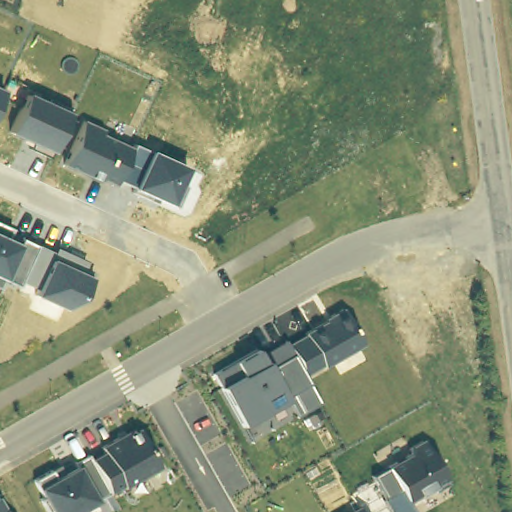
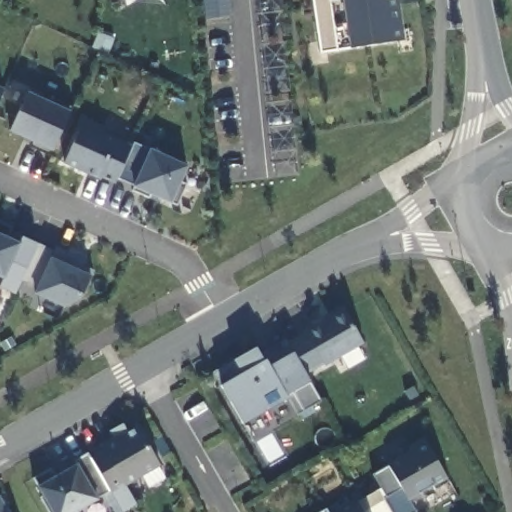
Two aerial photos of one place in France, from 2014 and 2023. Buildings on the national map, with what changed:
new [(206,20),(203,0),(229,0),(231,18),(206,20)]
new [(349,50),(319,53),(311,0),(396,0),(402,42),(349,50)]
unchanged [(0,98),(0,89),(3,91),(0,98)]
unchanged [(71,113),(54,151),(49,158),(28,148),(30,143),(7,132),(27,93),(71,113)]
unchanged [(103,129),(101,134),(132,146),(133,144),(151,151),(186,167),(169,203),(117,179),(114,187),(65,164),(82,121),(103,129)]
unchanged [(11,234),(53,252),(55,247),(89,262),(85,269),(95,273),(92,278),(82,299),(64,309),(34,295),(37,288),(21,281),(19,285),(5,278),(1,289),(0,289),(0,223),(14,229),(11,234)]
unchanged [(212,374),(233,361),(257,348),(260,353),(282,340),(285,345),(303,335),(301,332),(340,308),(362,344),(322,368),(321,365),(304,376),(318,402),(297,416),(287,400),(244,426),(212,374)]
unchanged [(32,480),(57,463),(65,474),(74,466),(72,463),(86,455),(135,425),(157,467),(97,500),(77,512),(51,512),(32,480)]
unchanged [(410,456),(411,447),(424,439),(447,482),(408,503),(413,512),(390,512),(371,477),(410,456)]
unchanged [(0,502),(6,512),(0,512),(0,502)]
unchanged [(357,507),(360,512),(349,512),(357,507)]

